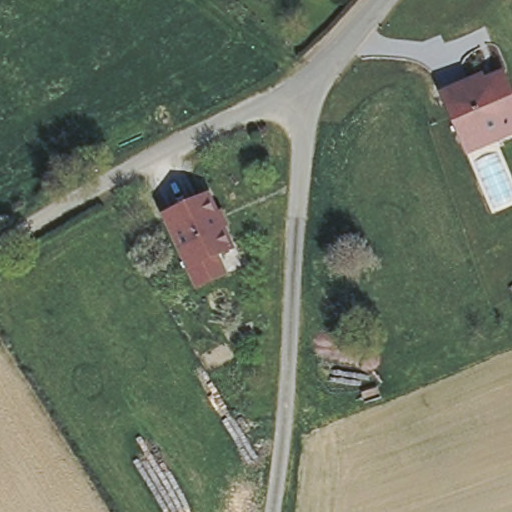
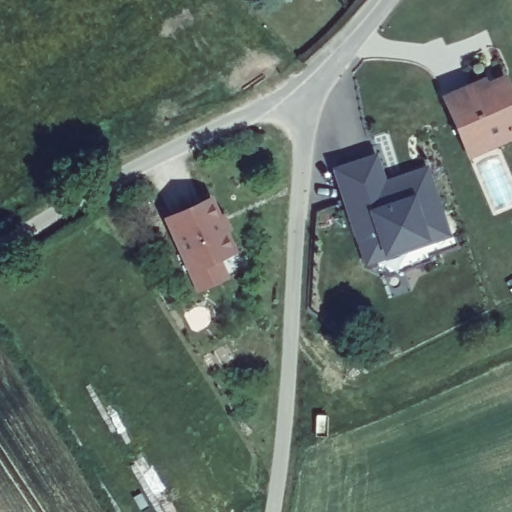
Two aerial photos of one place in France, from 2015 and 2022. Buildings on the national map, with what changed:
unchanged [(465,150),(462,144),(440,92),(465,82),(478,76),(481,82),(499,74),(512,104),(512,130),(465,150)]
new [(385,179),(428,164),(452,236),(365,266),(330,167),(376,151),(385,179)]
unchanged [(197,287),(189,268),(166,215),(210,198),(232,250),(216,257),(224,276),(197,287)]

